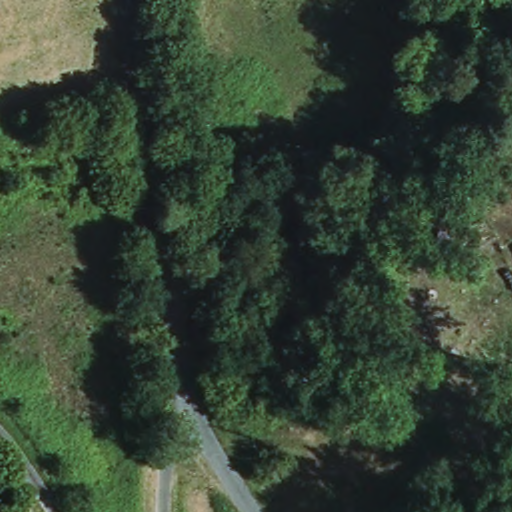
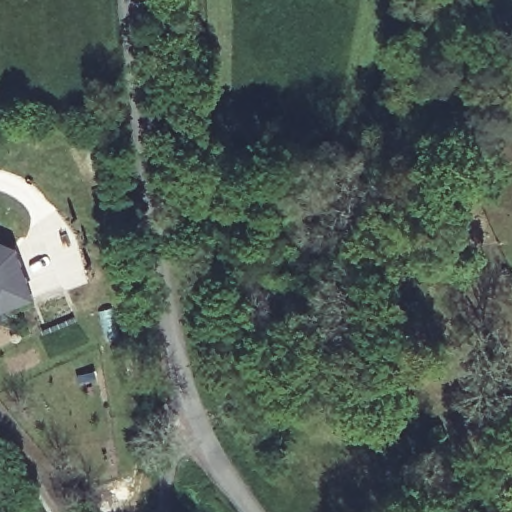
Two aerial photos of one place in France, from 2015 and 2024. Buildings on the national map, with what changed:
new [(0,241),(18,249),(35,299),(0,311),(0,241)]

